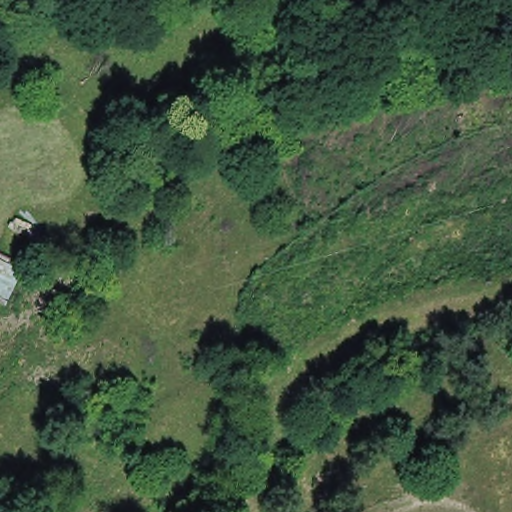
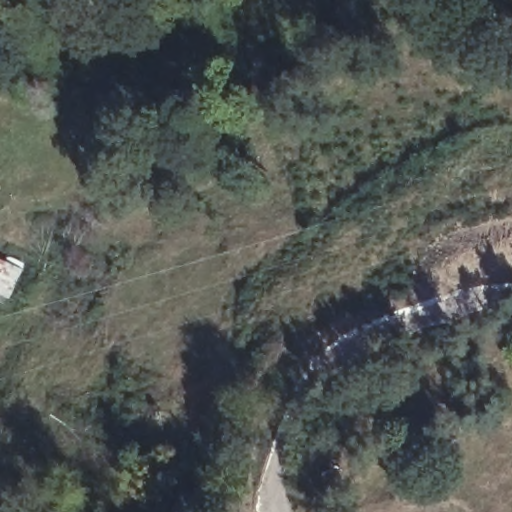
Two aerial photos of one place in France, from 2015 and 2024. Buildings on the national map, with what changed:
unchanged [(7,304),(0,301),(0,251),(27,261),(7,304)]

